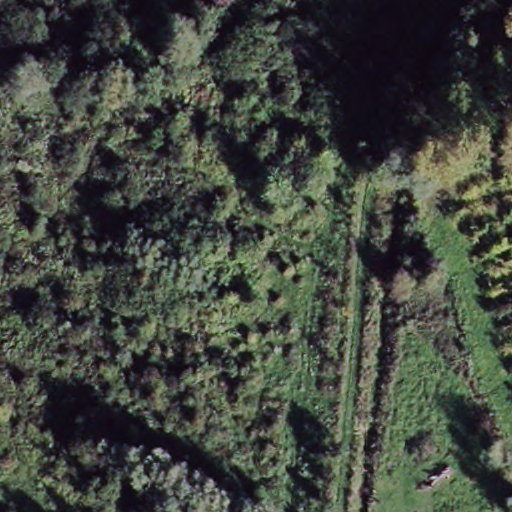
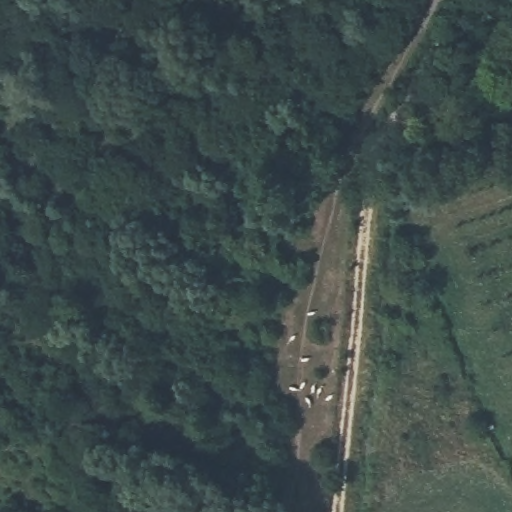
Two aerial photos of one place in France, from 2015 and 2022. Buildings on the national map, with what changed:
unchanged [(479,123),(479,152),(451,151),(451,122),(479,123)]

